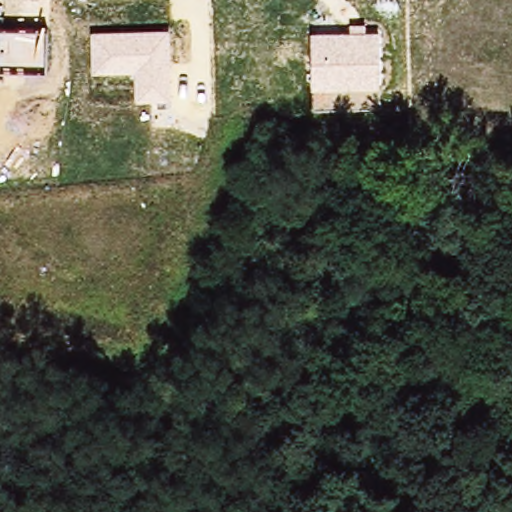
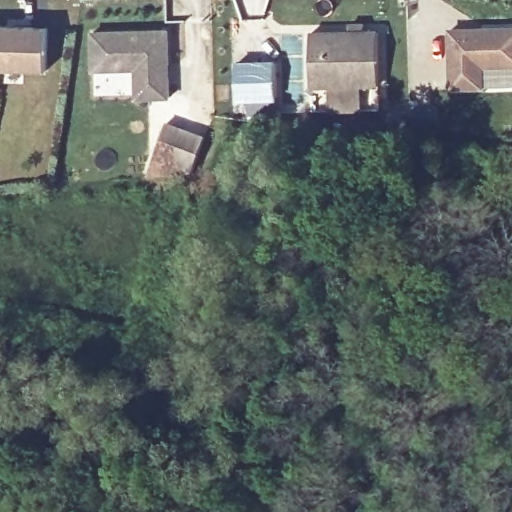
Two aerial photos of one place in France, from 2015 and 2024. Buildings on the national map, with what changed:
unchanged [(0,67),(0,23),(48,23),(47,67),(0,67)]
new [(486,68),(486,87),(450,88),(448,29),(512,26),(512,68),(486,68)]
unchanged [(171,98),(136,100),(134,71),(92,72),(90,31),(168,29),(171,98)]
unchanged [(378,31),(378,86),(312,88),(310,32),(378,31)]
new [(234,60),(277,58),(278,102),(234,102),(234,60)]
new [(167,120),(207,134),(196,164),(156,150),(167,120)]

